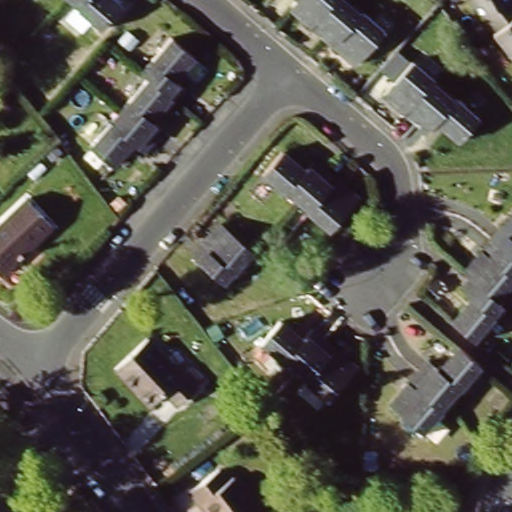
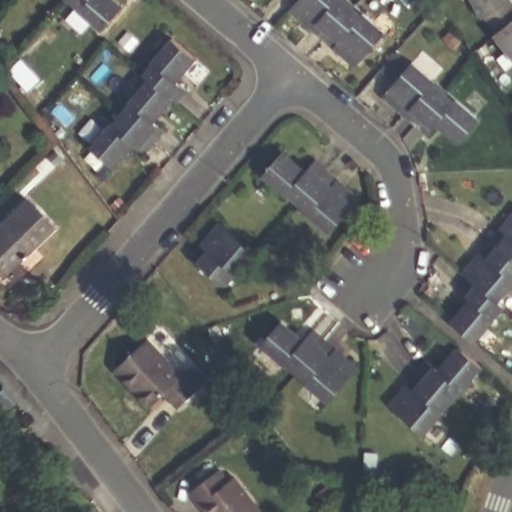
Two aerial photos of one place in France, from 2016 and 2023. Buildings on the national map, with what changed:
unchanged [(108,32),(72,1),(71,0),(118,0),(127,9),(108,32)]
unchanged [(288,12),(297,2),(294,0),(343,0),(349,6),(377,32),(347,67),(319,40),(289,12),(288,12)]
unchanged [(510,22),(512,20),(512,55),(495,33),(482,17),(473,0),(510,0),(500,9),(510,22)]
unchanged [(152,80),(150,78),(145,73),(154,62),(172,41),(178,36),(202,57),(190,71),(181,81),(180,82),(191,92),(183,102),(180,105),(177,102),(175,101),(155,123),(165,132),(154,146),(143,157),(134,148),(133,148),(129,154),(115,168),(99,152),(92,147),(119,118),(121,116),(152,80)]
unchanged [(481,125),(462,146),(437,124),(428,134),(415,122),(384,93),(411,62),(443,91),(481,125)]
unchanged [(262,171),(283,147),(305,167),(314,158),(322,166),(355,198),(325,232),(292,201),(262,171)]
unchanged [(50,225),(0,269),(0,220),(26,197),(50,225)]
unchanged [(461,273),(490,240),(512,216),(512,282),(495,302),(500,307),(472,340),(462,331),(448,318),(467,293),(460,288),(467,278),(461,273)]
unchanged [(225,285),(195,256),(222,225),(252,252),(225,285)]
unchanged [(262,346),(284,322),(305,342),(314,332),(324,341),(354,370),(323,403),(292,374),(262,346)]
unchanged [(150,337),(182,379),(192,371),(203,385),(171,410),(160,396),(145,408),(113,366),(150,337)]
unchanged [(486,368),(456,402),(427,434),(395,406),(424,375),(433,364),(442,372),(462,348),(486,368)]
unchanged [(217,440),(209,428),(230,412),(240,422),(217,440)]
unchanged [(233,480),(256,512),(206,512),(200,503),(195,507),(188,496),(219,473),(227,485),(233,480)]
unchanged [(59,501),(67,512),(46,512),(59,501)]

